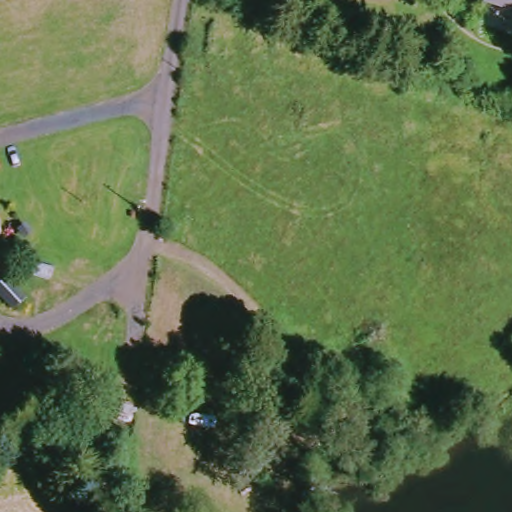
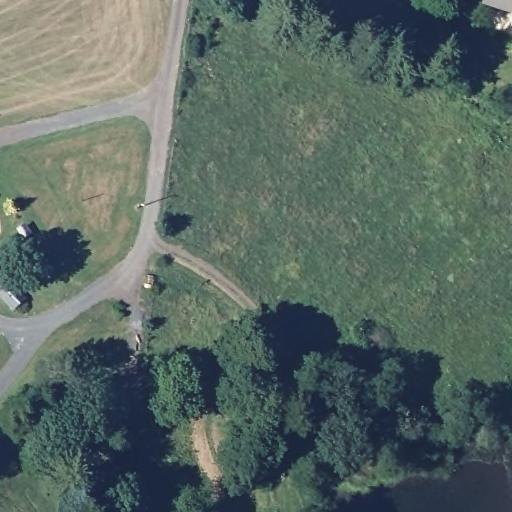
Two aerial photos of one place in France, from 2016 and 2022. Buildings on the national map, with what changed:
unchanged [(489,0),(512,0),(512,35),(481,25),(489,0)]
unchanged [(25,297),(11,308),(0,293),(0,273),(6,270),(25,297)]

